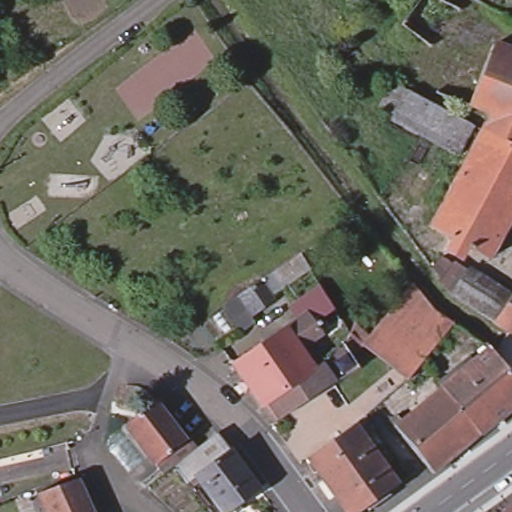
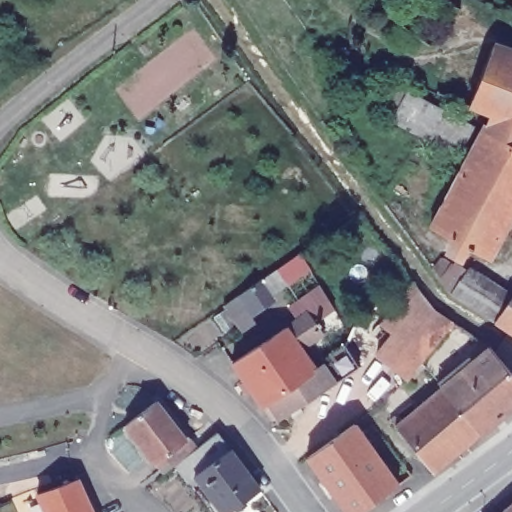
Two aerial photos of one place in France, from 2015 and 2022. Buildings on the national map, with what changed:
unchanged [(400,28),(421,0),(438,0),(437,1),(458,11),(430,50),(400,28)]
unchanged [(488,113),(467,104),(491,43),(512,50),(512,144),(482,129),(488,113)]
unchanged [(385,121),(387,118),(373,110),(387,86),(387,85),(402,94),(465,128),(451,155),(385,121)]
unchanged [(482,129),(512,144),(512,212),(487,258),(430,226),(482,129)]
unchanged [(461,271),(505,296),(488,320),(450,292),(429,262),(438,250),(461,271)]
unchanged [(273,400),(266,405),(236,362),(252,352),(222,308),(241,295),(244,293),(264,279),(304,251),(311,262),(272,290),(276,295),(273,297),(291,325),(312,311),(317,306),(324,315),(318,320),(327,331),(305,347),(320,368),(320,369),(273,400)]
unchanged [(362,298),(385,312),(405,287),(427,313),(447,327),(416,365),(402,383),(343,337),(362,298)]
unchanged [(505,296),(512,287),(512,335),(488,320),(505,296)]
unchanged [(339,381),(285,417),(273,400),(320,369),(320,368),(325,365),(323,363),(324,362),(337,347),(347,342),(360,364),(337,379),(339,381)]
unchanged [(484,350),(512,384),(512,405),(475,436),(436,389),(484,350)]
unchanged [(427,476),(389,429),(436,389),(475,436),(427,476)]
unchanged [(231,512),(217,512),(195,481),(187,486),(174,469),(162,478),(155,469),(125,430),(156,405),(187,445),(193,454),(217,436),(258,493),(231,512)]
unchanged [(353,422),(397,483),(356,512),(345,512),(305,455),(353,422)]
unchanged [(77,477),(92,512),(38,512),(31,497),(37,495),(36,493),(77,477)]
unchanged [(512,504),(512,512),(503,512),(512,504)]

